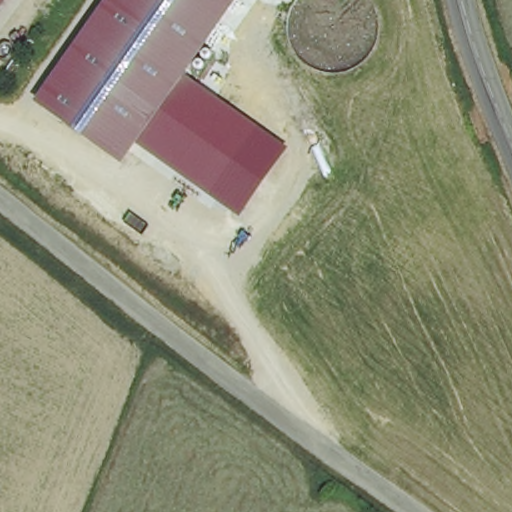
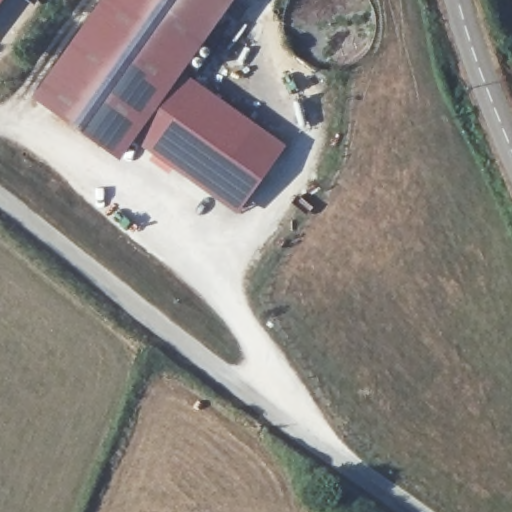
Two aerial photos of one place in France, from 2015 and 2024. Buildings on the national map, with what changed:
unchanged [(132,141),(118,160),(32,99),(102,0),(232,0),(181,72),(132,141)]
unchanged [(236,214),(132,141),(181,72),(285,146),(236,214)]

